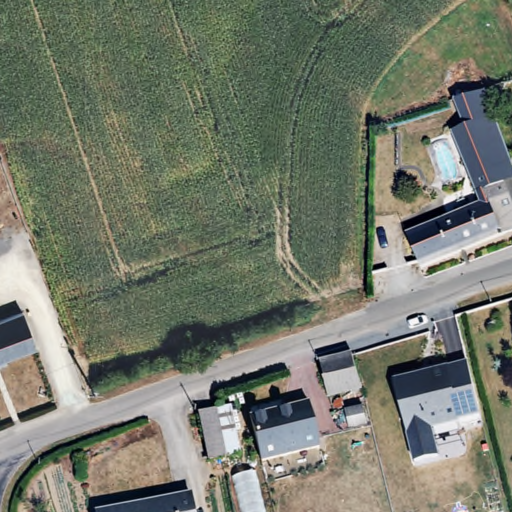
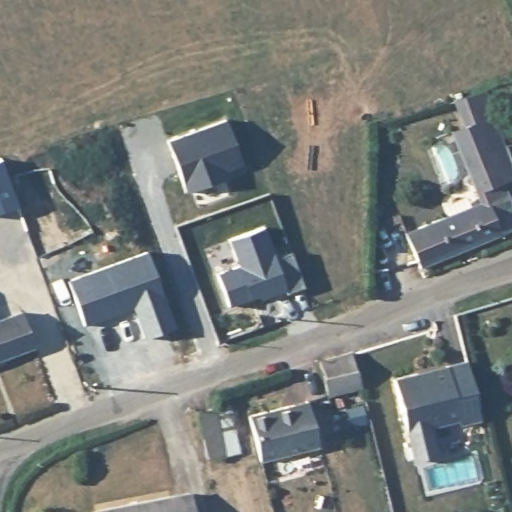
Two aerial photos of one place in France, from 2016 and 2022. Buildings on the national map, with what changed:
unchanged [(458,132),(472,127),(499,118),(508,144),(512,155),(512,168),(502,171),(512,201),(512,234),(460,252),(447,215),(483,202),(475,180),(458,132)]
new [(185,192),(167,140),(226,119),(242,166),(229,170),(231,176),(185,192)]
new [(0,158),(17,206),(0,212),(0,158)]
unchanged [(419,220),(420,223),(446,213),(447,215),(460,252),(396,274),(385,244),(413,233),(410,224),(419,220)]
new [(287,293),(286,290),(261,299),(259,295),(228,306),(217,273),(238,265),(228,239),(264,226),(275,258),(292,252),(304,287),(287,293)]
new [(135,307),(85,324),(69,280),(147,252),(174,327),(145,337),(135,307)]
unchanged [(19,308),(32,343),(0,355),(0,315),(19,308)]
unchanged [(347,352),(354,380),(356,387),(328,393),(320,360),(347,352)]
unchanged [(418,370),(420,375),(448,368),(447,363),(467,358),(482,416),(461,421),(460,416),(432,423),(439,451),(415,457),(395,376),(418,370)]
unchanged [(294,405),(308,401),(319,446),(306,450),(261,461),(250,415),(294,405)]
unchanged [(219,404),(227,452),(210,455),(202,407),(219,404)]
unchanged [(187,493),(190,512),(94,512),(94,510),(187,493)]

